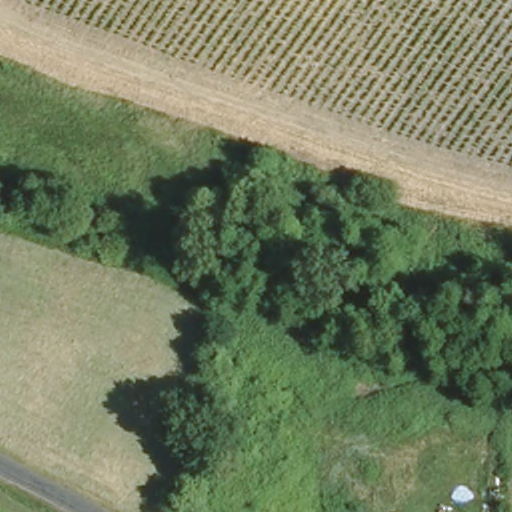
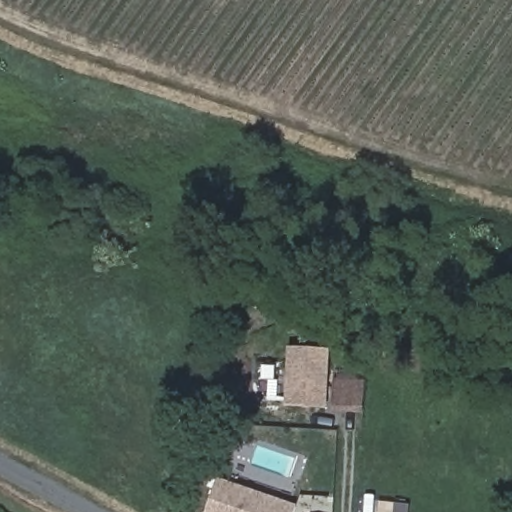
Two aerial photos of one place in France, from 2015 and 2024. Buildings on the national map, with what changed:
new [(287,347),(333,348),(332,375),(365,375),(364,413),(330,413),(331,407),(285,406),(287,347)]
new [(297,505),(295,512),(206,512),(218,477),(297,505)]

